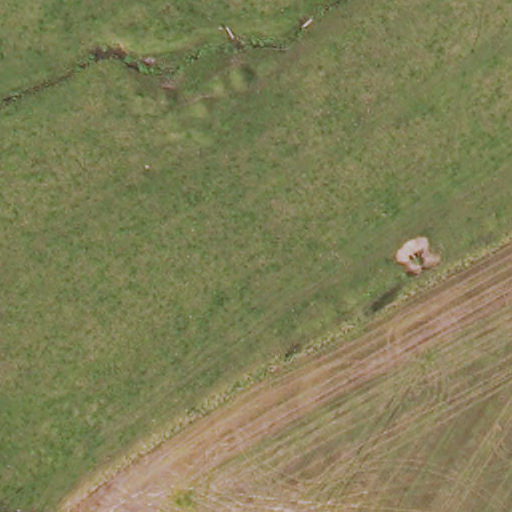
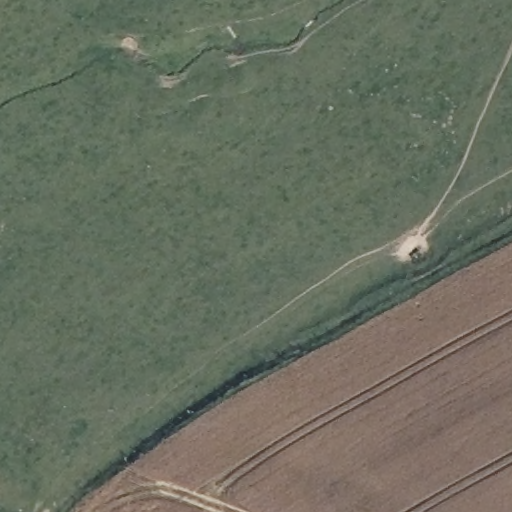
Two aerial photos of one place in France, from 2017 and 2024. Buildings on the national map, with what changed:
[]

